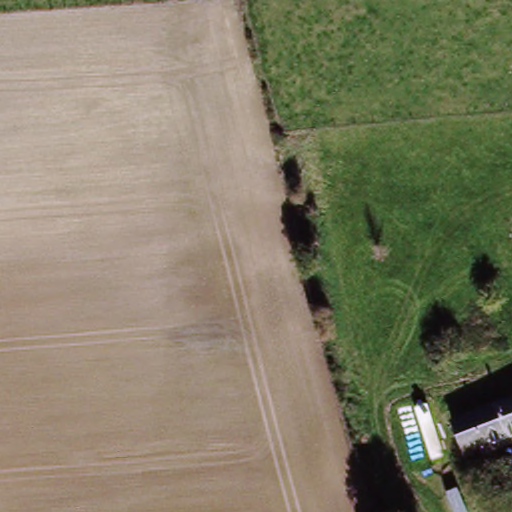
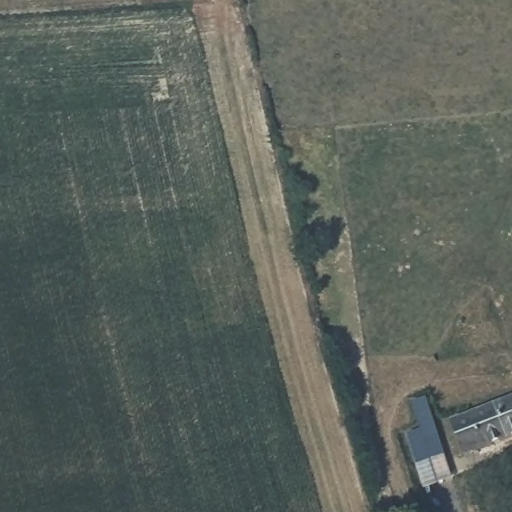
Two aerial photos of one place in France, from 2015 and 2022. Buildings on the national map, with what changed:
new [(405,433),(421,430),(414,408),(428,405),(443,457),(416,465),(405,433)]
unchanged [(464,457),(453,428),(512,409),(512,441),(464,457)]

